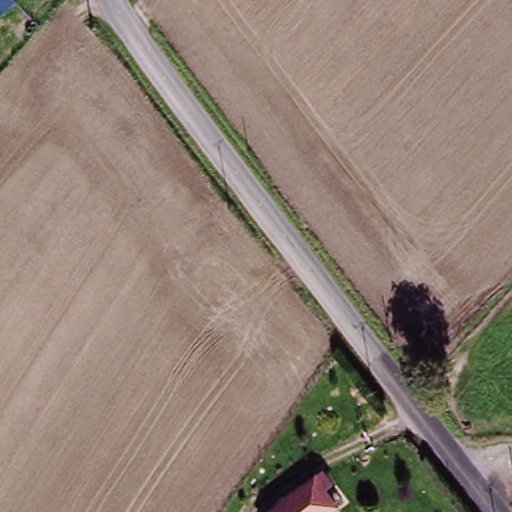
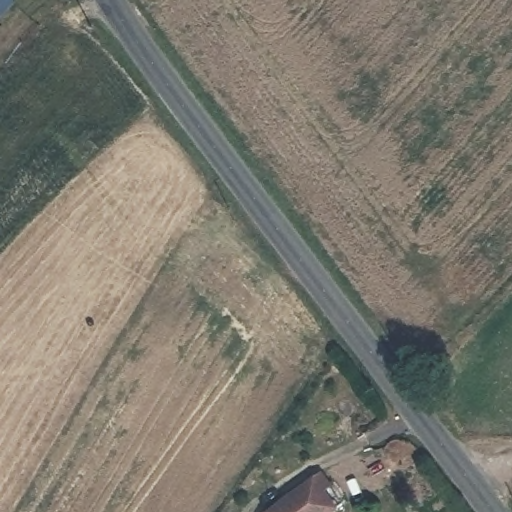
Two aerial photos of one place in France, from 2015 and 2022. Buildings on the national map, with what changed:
unchanged [(0,19),(0,0),(12,0),(15,4),(0,19)]
unchanged [(317,499),(327,512),(270,512),(315,481),(324,493),(317,499)]

